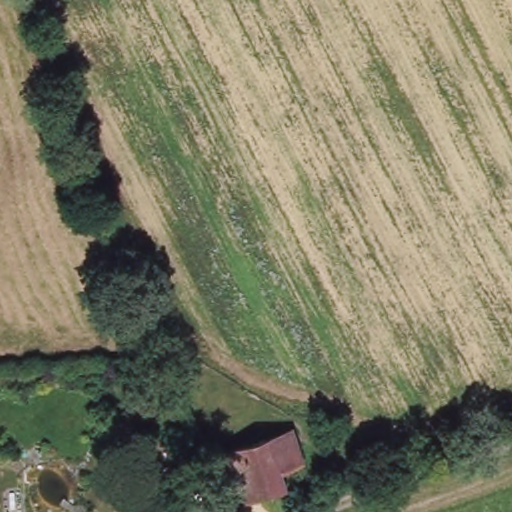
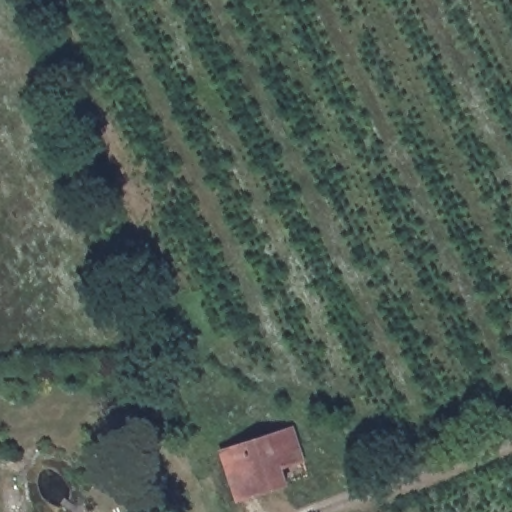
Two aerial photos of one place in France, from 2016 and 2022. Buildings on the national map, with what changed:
unchanged [(292,488),(241,506),(223,454),(295,429),(306,460),(284,467),(292,488)]

